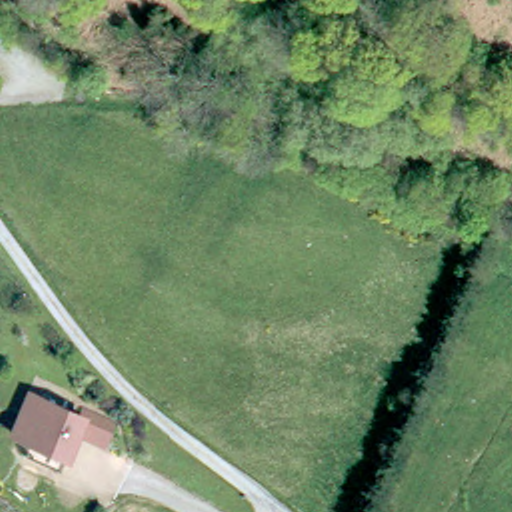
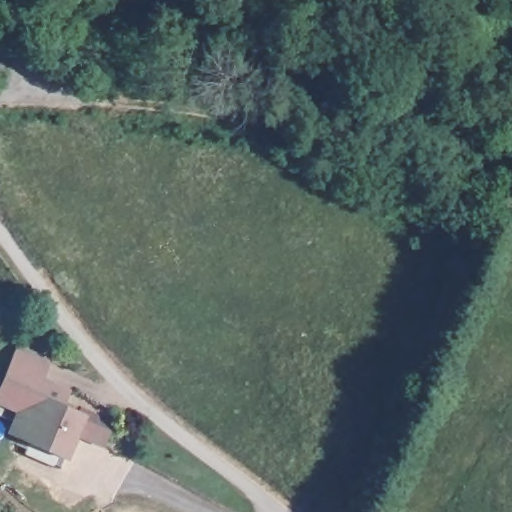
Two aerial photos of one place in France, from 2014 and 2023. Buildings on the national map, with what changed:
new [(4,420),(0,418),(0,384),(17,345),(50,360),(43,376),(52,380),(43,397),(19,385),(4,420)]
unchanged [(16,448),(22,434),(2,425),(19,385),(75,411),(78,402),(107,415),(95,438),(68,425),(52,463),(16,448)]

